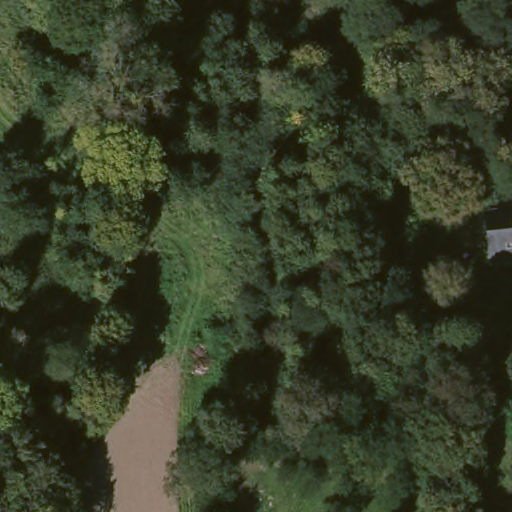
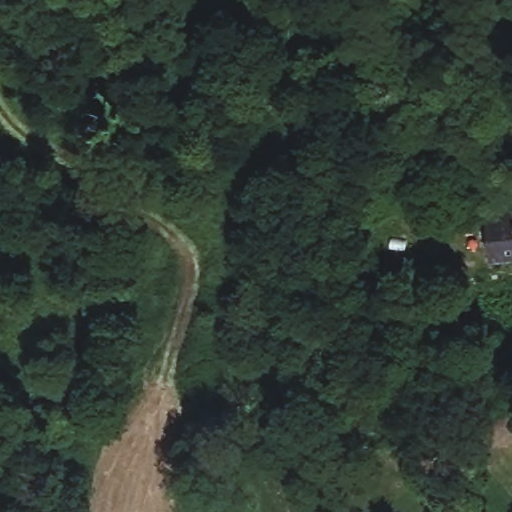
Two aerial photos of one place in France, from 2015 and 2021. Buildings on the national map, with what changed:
unchanged [(490,261),(487,198),(512,196),(512,260),(490,261)]

